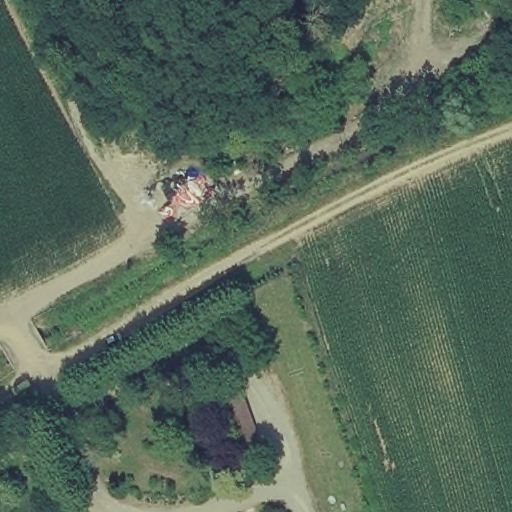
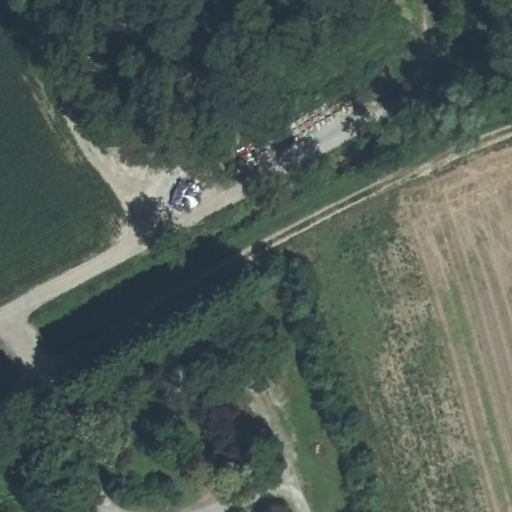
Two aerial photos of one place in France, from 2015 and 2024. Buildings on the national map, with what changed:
unchanged [(512,38),(512,59),(495,68),(485,49),(510,35),(512,38)]
unchanged [(247,385),(267,450),(232,457),(213,395),(247,385)]

